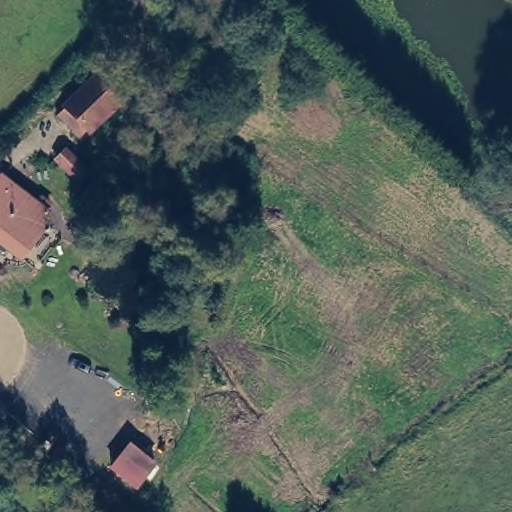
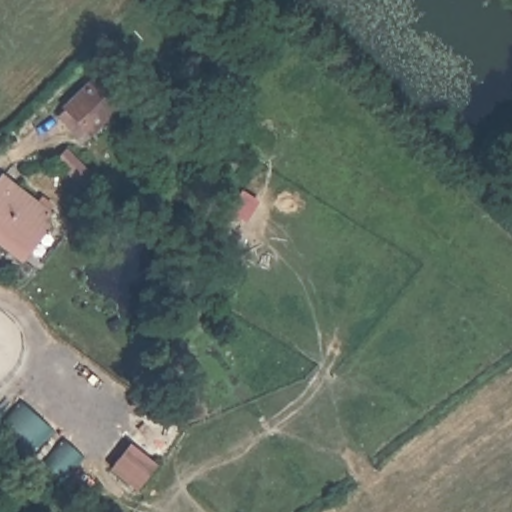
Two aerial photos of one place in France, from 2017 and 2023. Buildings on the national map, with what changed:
unchanged [(58,119),(65,111),(62,109),(90,80),(93,84),(101,76),(120,96),(116,102),(117,104),(89,134),(86,131),(79,138),(58,119)]
unchanged [(69,145),(90,165),(81,176),(60,155),(69,145)]
unchanged [(101,175),(111,185),(99,196),(90,184),(101,175)]
unchanged [(45,212),(44,216),(40,222),(46,227),(21,262),(0,247),(0,180),(45,212)]
unchanged [(131,446),(155,468),(137,492),(109,470),(131,446)]

